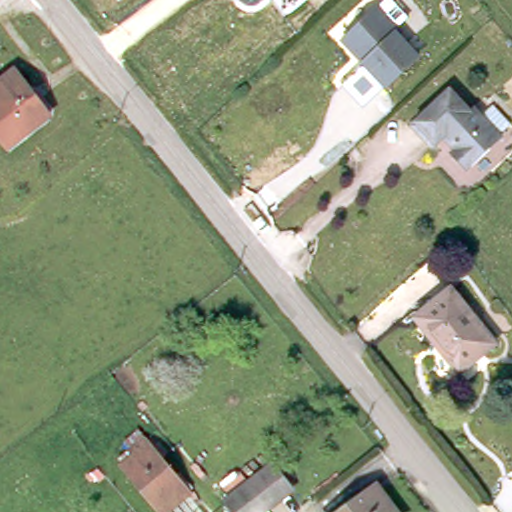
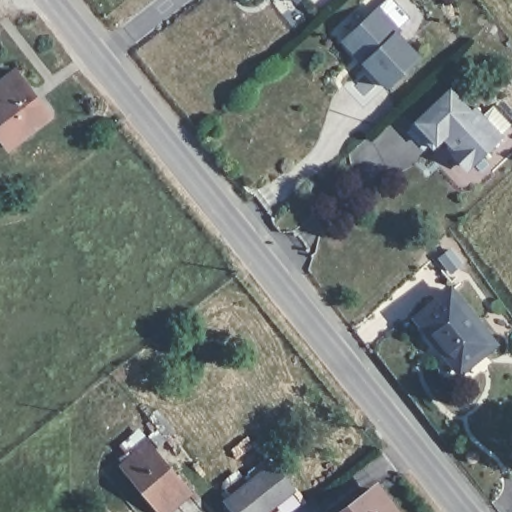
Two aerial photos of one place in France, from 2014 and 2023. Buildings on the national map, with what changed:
unchanged [(296,3),(293,0),(299,0),(296,3)]
unchanged [(401,26),(398,30),(421,53),(390,83),(366,58),(370,55),(364,48),(355,47),(344,36),(379,4),(401,26)]
unchanged [(0,135),(0,85),(17,72),(29,87),(50,115),(45,119),(9,147),(0,135)]
unchanged [(479,106),(490,118),(501,108),(512,121),(512,131),(475,167),(468,167),(458,157),(463,145),(451,132),(437,145),(414,120),(452,85),(475,110),(479,106)]
unchanged [(452,288),(497,343),(464,371),(418,316),(452,288)]
unchanged [(165,512),(156,501),(121,458),(146,438),(182,480),(192,492),(169,512),(165,512)]
unchanged [(296,488),(265,512),(239,512),(229,500),(276,463),(296,488)]
unchanged [(393,512),(332,512),(371,482),(393,512)]

